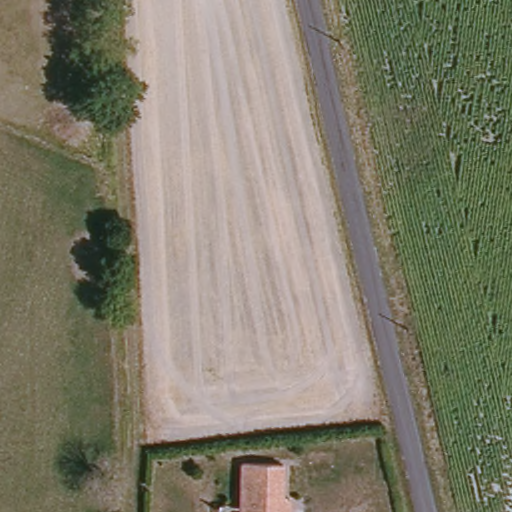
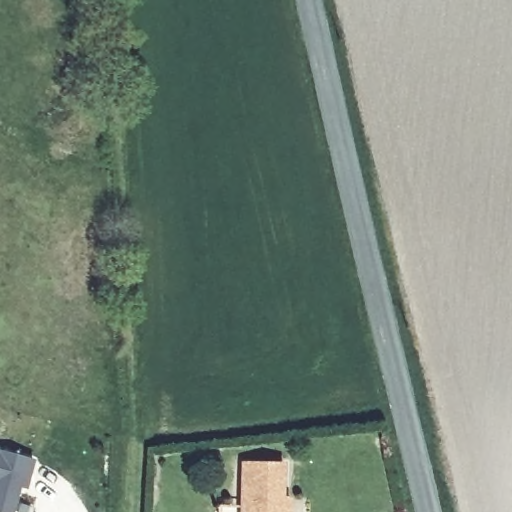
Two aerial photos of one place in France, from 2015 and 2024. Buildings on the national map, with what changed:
new [(19,491),(14,512),(0,512),(0,450),(32,458),(23,492),(19,491)]
unchanged [(283,460),(281,494),(289,495),(289,505),(289,512),(242,512),(243,459),(283,460)]

